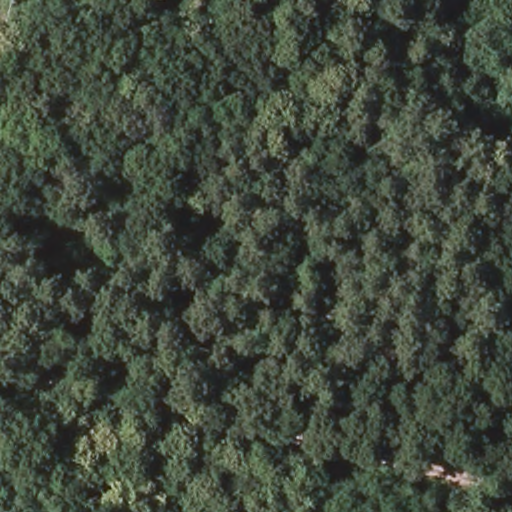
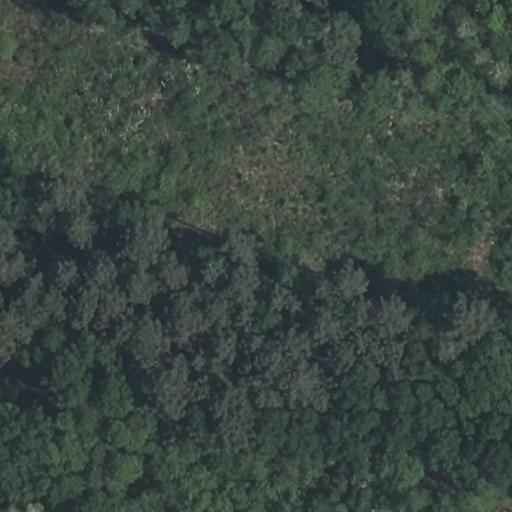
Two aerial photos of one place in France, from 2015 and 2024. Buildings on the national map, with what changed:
[]

